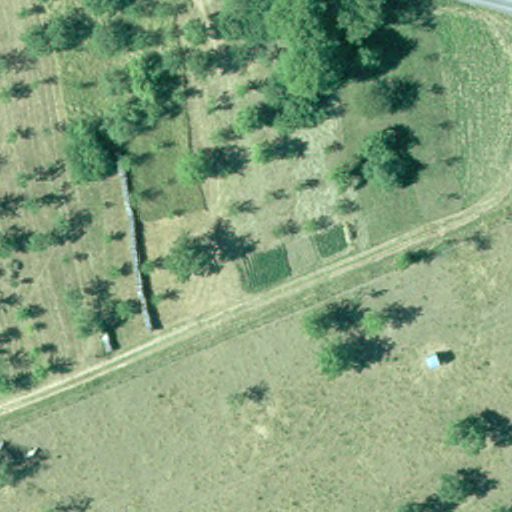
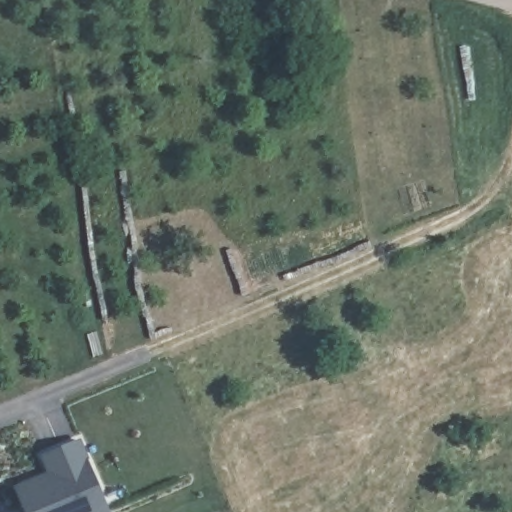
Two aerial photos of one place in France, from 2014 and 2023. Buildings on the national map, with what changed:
new [(46,473),(40,456),(83,440),(109,512),(24,512),(15,485),(46,473)]

